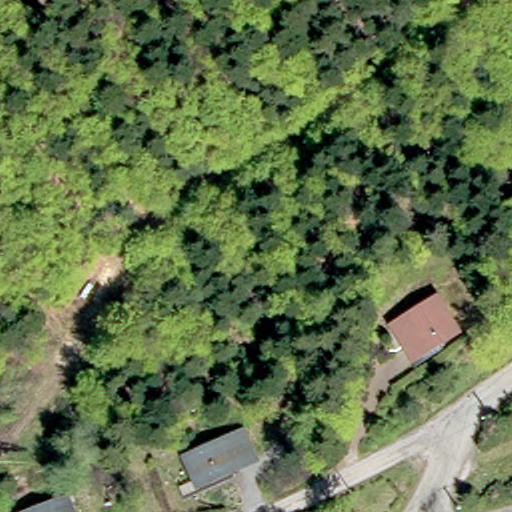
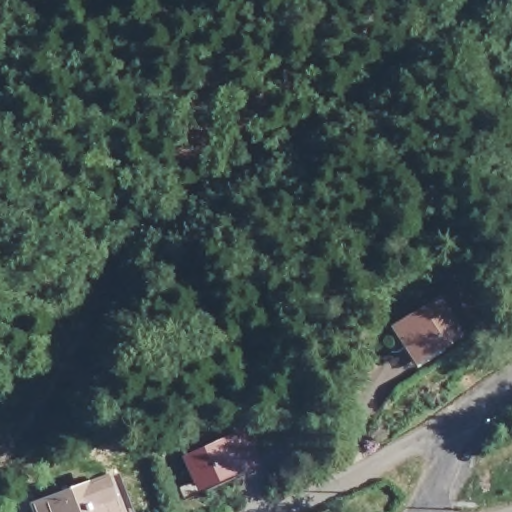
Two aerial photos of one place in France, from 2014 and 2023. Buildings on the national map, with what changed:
unchanged [(457,342),(418,362),(401,330),(440,310),(457,342)]
unchanged [(260,471),(202,494),(190,465),(247,443),(260,471)]
new [(119,474),(132,511),(128,512),(34,512),(31,505),(119,474)]
demolished [(69,497),(75,512),(32,512),(69,497)]

